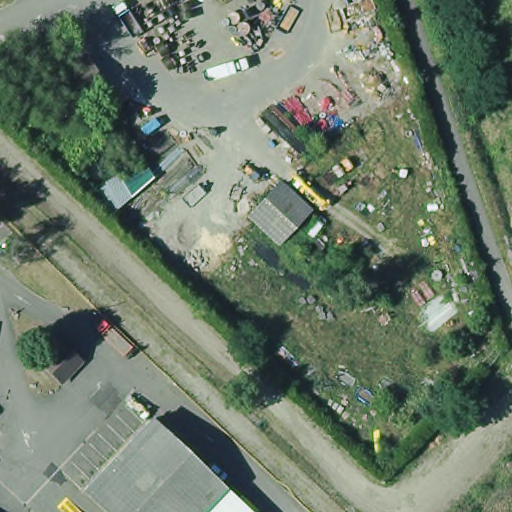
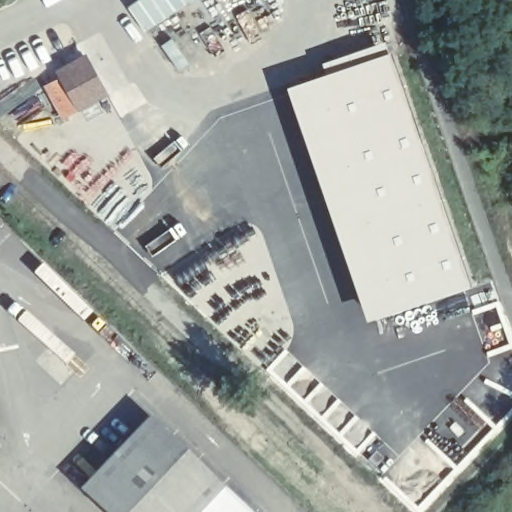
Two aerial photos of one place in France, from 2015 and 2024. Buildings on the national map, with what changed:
new [(320,65),(386,42),(390,55),(410,108),(471,289),(446,299),(366,326),(284,91),(323,77),(320,65)]
unchanged [(45,86),(60,79),(56,71),(81,57),(101,92),(74,106),(60,114),(45,86)]
demolished [(147,165),(154,177),(110,213),(97,191),(147,165)]
unchanged [(281,181),(310,209),(281,239),(252,211),(281,181)]
unchanged [(55,338),(76,358),(56,380),(34,360),(55,338)]
unchanged [(151,422),(225,490),(204,512),(105,512),(85,493),(151,422)]
unchanged [(249,512),(204,512),(225,490),(249,512)]

